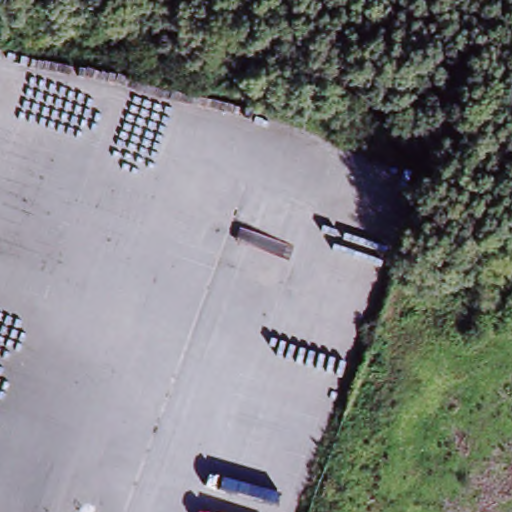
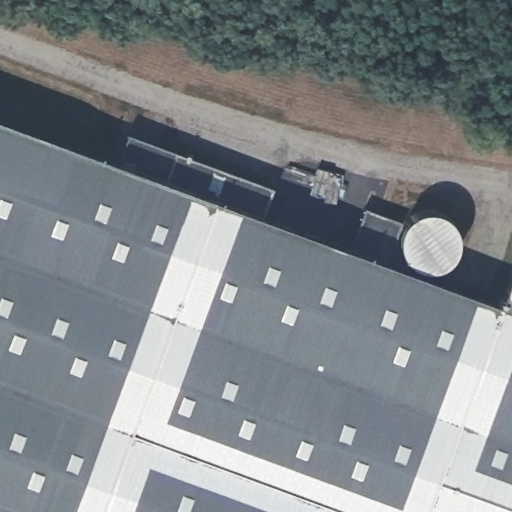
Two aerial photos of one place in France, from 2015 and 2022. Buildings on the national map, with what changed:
new [(126,131),(273,184),(249,211),(333,242),(360,204),(405,214),(417,209),(436,209),(449,216),(458,232),(457,249),(442,265),(417,272),(495,300),(512,251),(512,512),(0,512),(0,118),(104,159),(126,131)]

